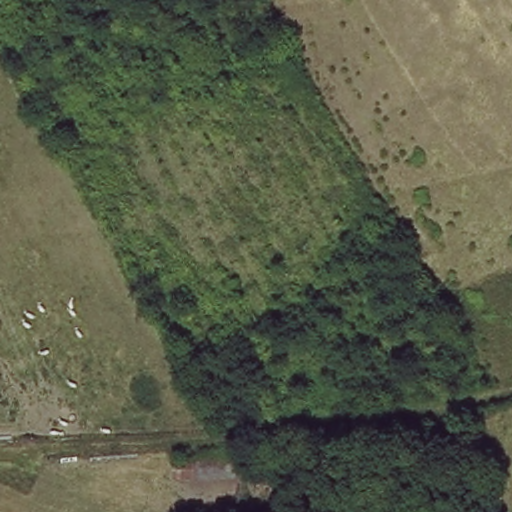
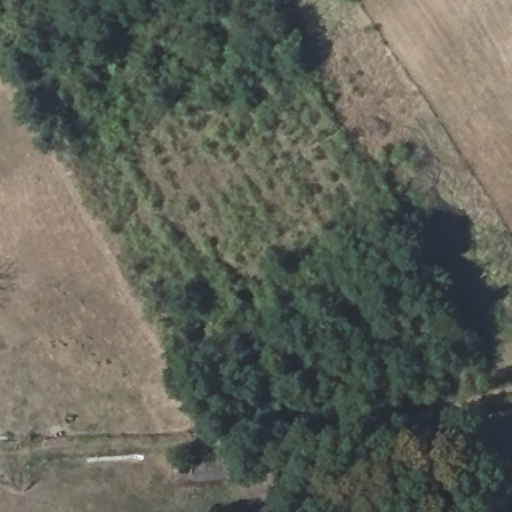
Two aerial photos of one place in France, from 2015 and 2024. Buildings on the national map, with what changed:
unchanged [(191,457),(192,479),(169,479),(168,457),(191,457)]

